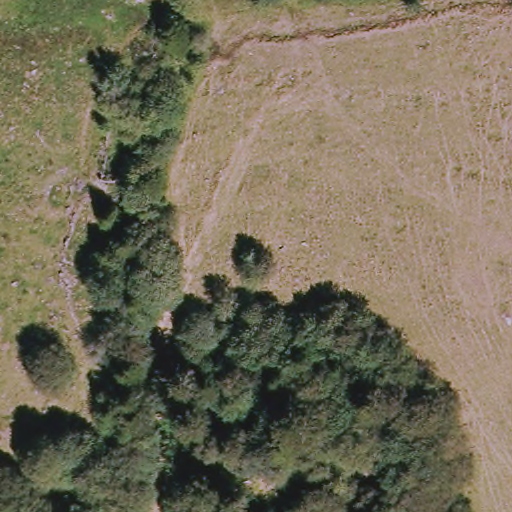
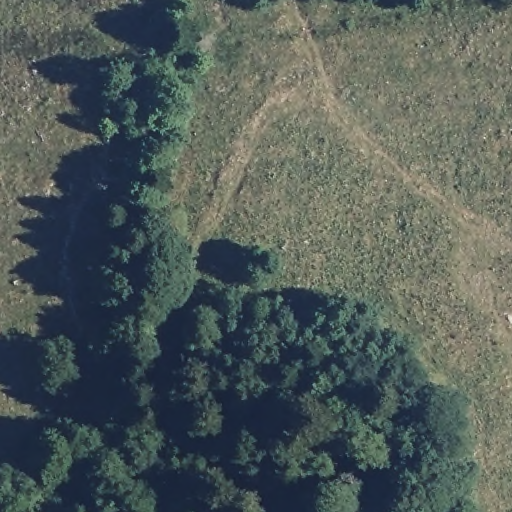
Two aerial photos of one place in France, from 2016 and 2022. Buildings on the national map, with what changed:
unchanged [(130,88),(133,66),(152,69),(148,91),(130,88)]

